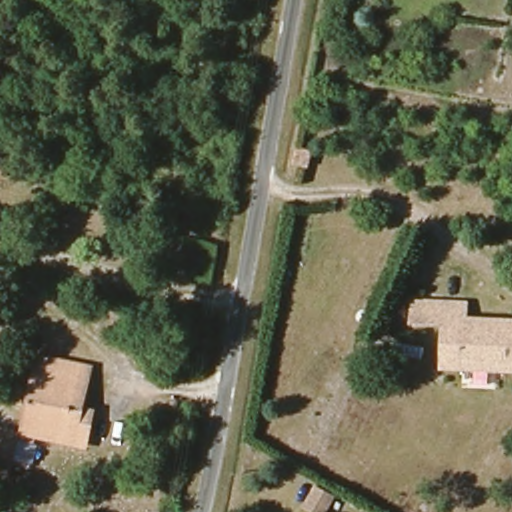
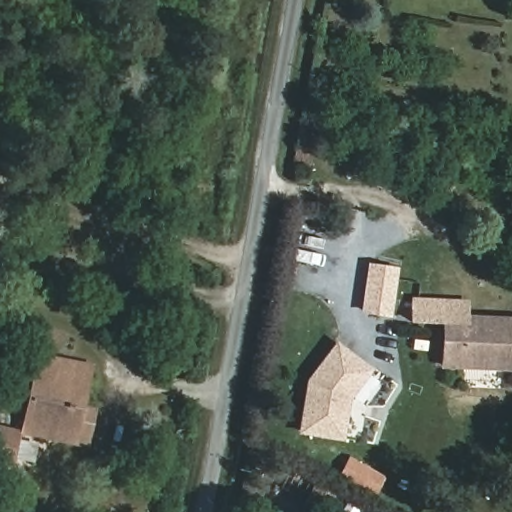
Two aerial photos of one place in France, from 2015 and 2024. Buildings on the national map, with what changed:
new [(366,264),(398,268),(392,317),(363,314),(366,264)]
unchanged [(440,365),(442,321),(410,320),(411,298),(466,301),(465,315),(512,318),(512,368),(440,365)]
new [(297,435),(305,382),(336,341),(372,370),(348,400),(342,441),(297,435)]
unchanged [(86,444),(23,430),(25,421),(39,355),(91,366),(82,407),(93,410),(86,444)]
unchanged [(13,464),(12,471),(0,469),(0,437),(18,441),(17,448),(34,452),(31,468),(13,464)]

